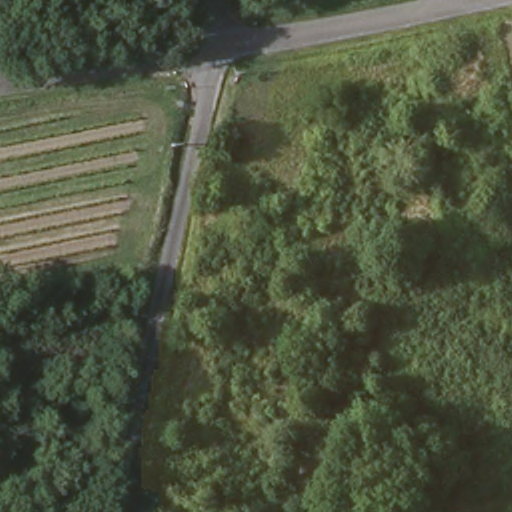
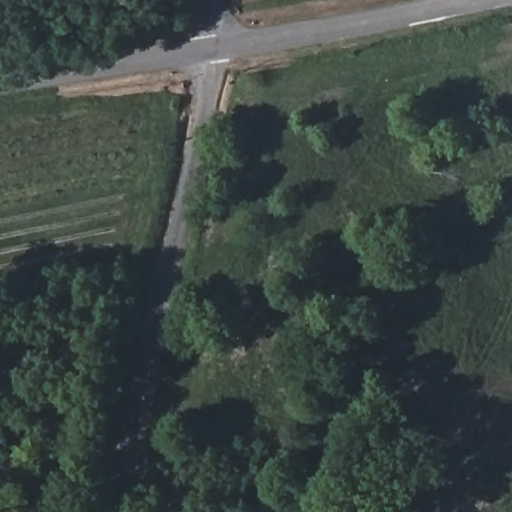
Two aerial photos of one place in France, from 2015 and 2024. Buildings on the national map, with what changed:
[]

